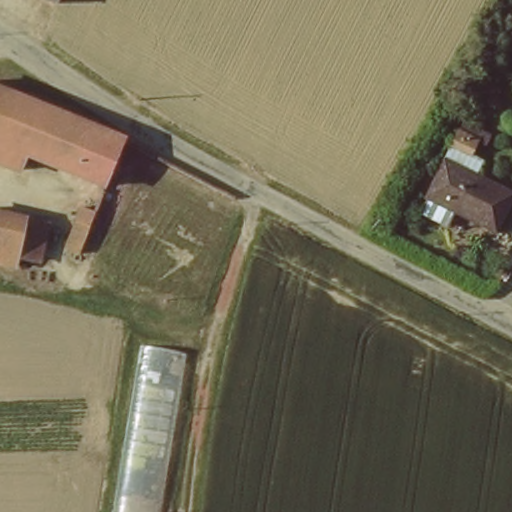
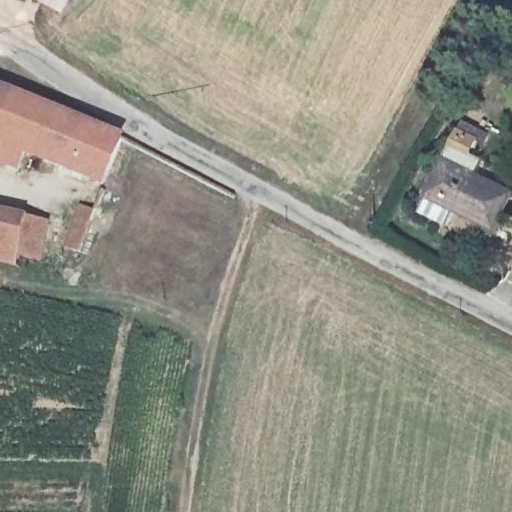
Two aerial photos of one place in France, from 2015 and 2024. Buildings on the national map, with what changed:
unchanged [(47,0),(55,0),(53,3),(47,0)]
unchanged [(10,91),(0,114),(0,88),(10,91)]
unchanged [(103,182),(22,152),(17,164),(0,158),(0,114),(10,91),(103,131),(122,137),(103,182)]
unchanged [(512,210),(499,235),(430,201),(449,165),(512,198),(512,210)]
unchanged [(68,236),(77,213),(92,217),(80,241),(68,236)]
unchanged [(37,263),(15,257),(12,269),(0,267),(0,215),(25,220),(47,224),(37,263)]
demolished [(163,512),(114,512),(136,351),(187,353),(163,512)]

